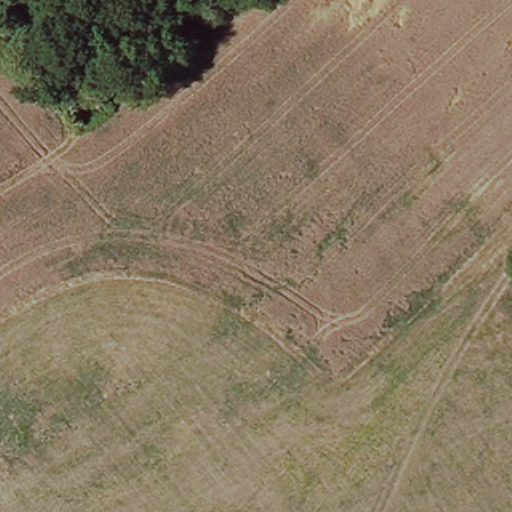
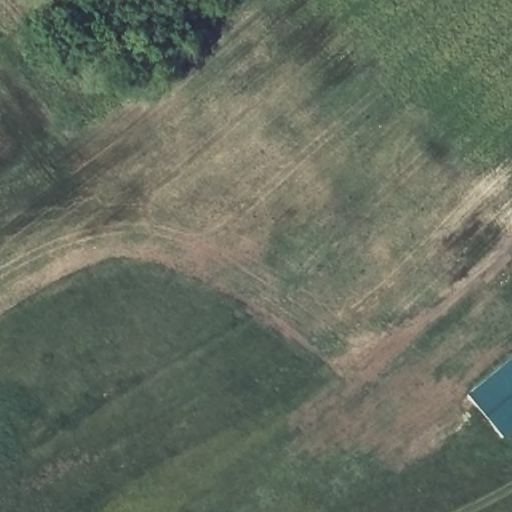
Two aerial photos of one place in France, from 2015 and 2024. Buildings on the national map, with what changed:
new [(512,430),(501,439),(465,396),(512,357),(512,430)]

